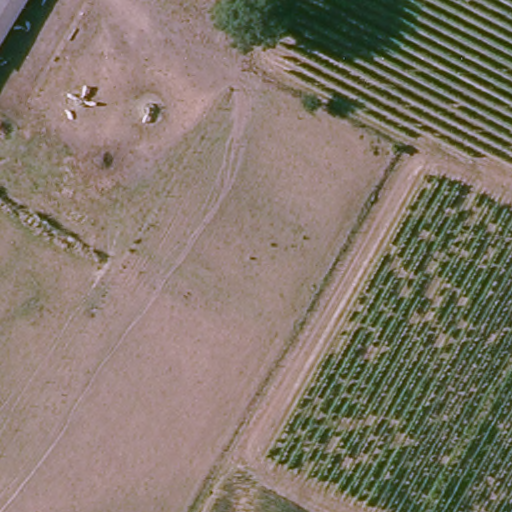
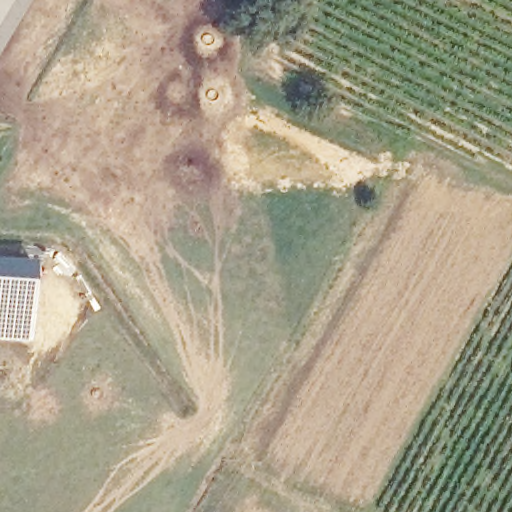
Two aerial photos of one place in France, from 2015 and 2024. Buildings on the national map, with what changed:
unchanged [(0,57),(0,0),(36,0),(0,57)]
new [(30,341),(0,339),(0,257),(35,259),(30,341)]

